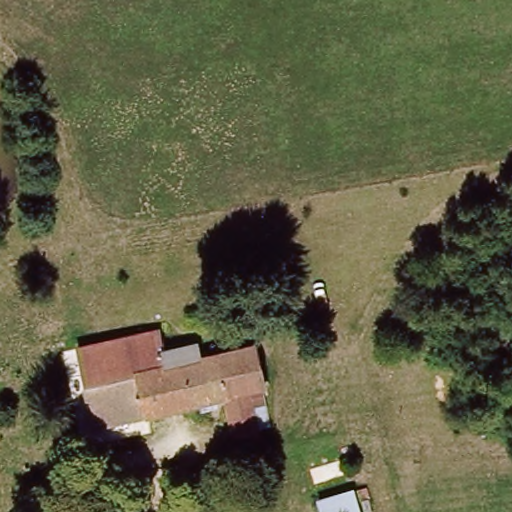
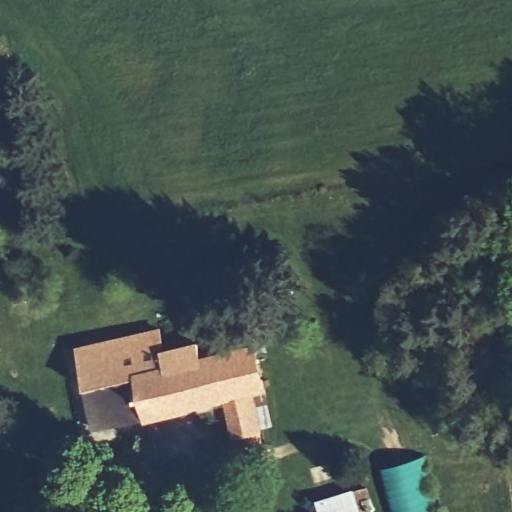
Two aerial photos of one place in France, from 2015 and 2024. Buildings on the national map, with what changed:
unchanged [(162,369),(135,376),(145,417),(93,427),(85,388),(76,349),(155,333),(159,352),(162,369)]
unchanged [(220,350),(255,343),(272,413),(250,419),(250,392),(240,392),(241,370),(223,372),(222,356),(220,350)]
unchanged [(135,376),(162,369),(159,352),(193,346),(196,360),(222,356),(223,372),(241,370),(240,392),(250,392),(249,445),(227,445),(227,396),(145,417),(135,376)]
new [(438,512),(395,512),(382,466),(422,455),(438,512)]
unchanged [(354,490),(360,512),(321,512),(317,500),(354,490)]

